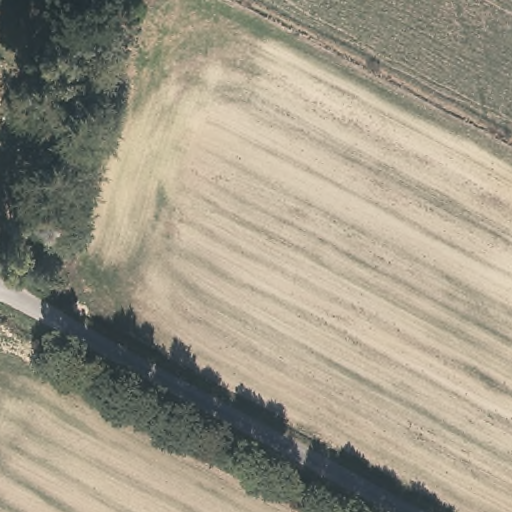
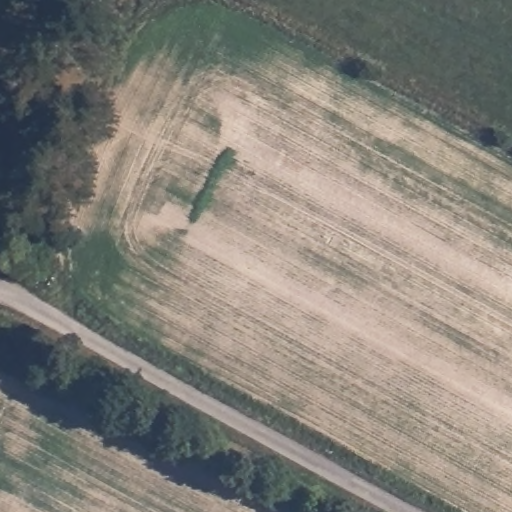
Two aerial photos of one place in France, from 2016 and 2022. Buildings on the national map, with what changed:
[]

